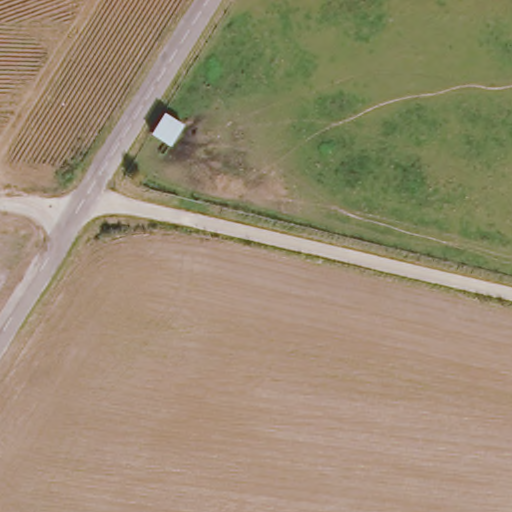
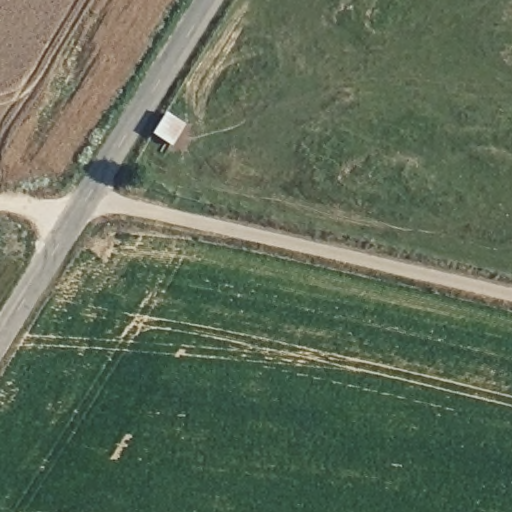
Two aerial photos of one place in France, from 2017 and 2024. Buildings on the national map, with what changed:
unchanged [(190,125),(175,147),(155,132),(168,112),(190,125)]

